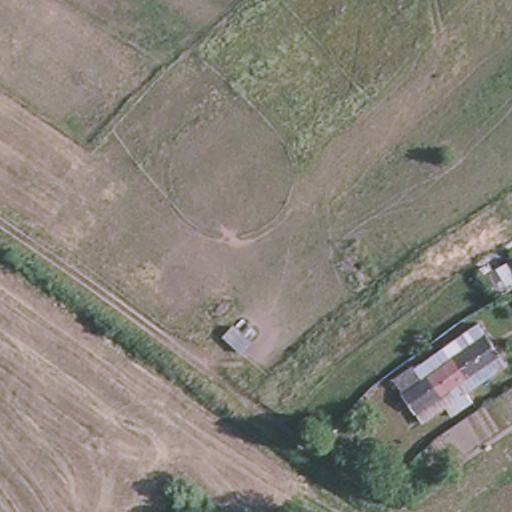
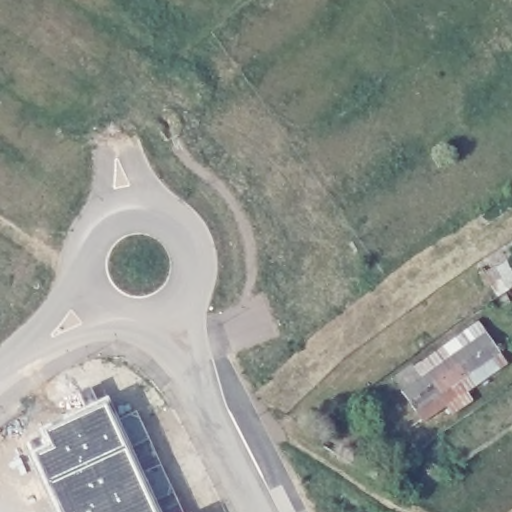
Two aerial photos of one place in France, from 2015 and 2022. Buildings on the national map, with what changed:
unchanged [(504,362),(468,390),(474,402),(453,418),(446,411),(422,426),(395,382),(476,321),(504,362)]
new [(61,512),(32,444),(110,407),(157,512),(61,512)]

